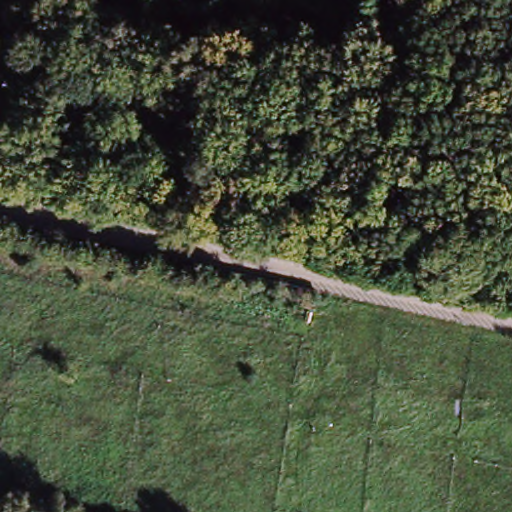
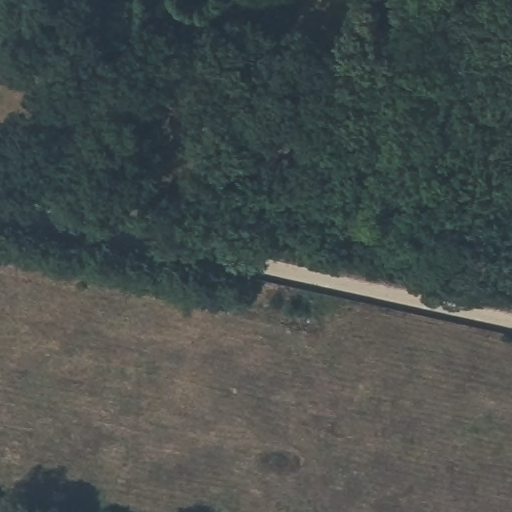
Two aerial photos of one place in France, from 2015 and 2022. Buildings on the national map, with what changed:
unchanged [(47,141),(42,162),(27,160),(31,138),(47,141)]

